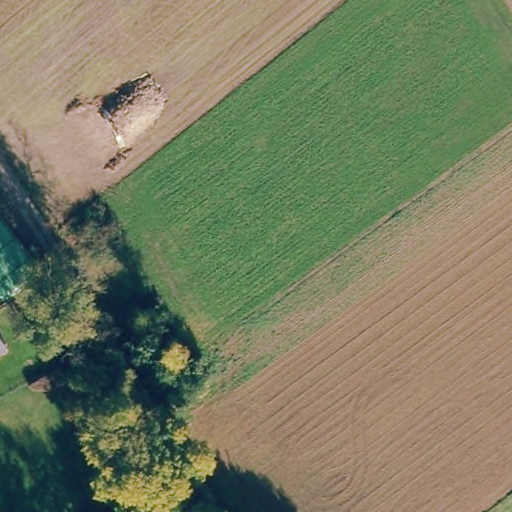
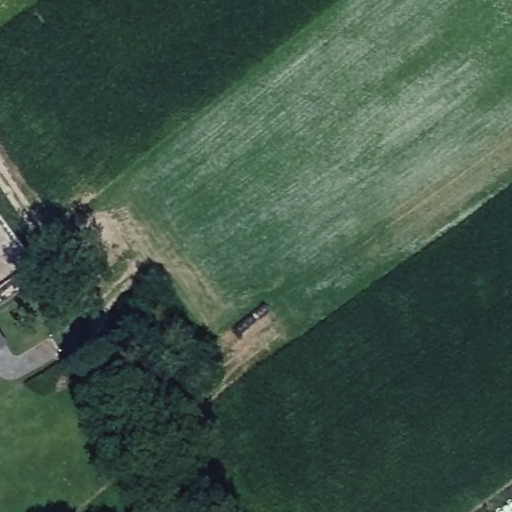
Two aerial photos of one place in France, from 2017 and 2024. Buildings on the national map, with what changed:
unchanged [(0,354),(0,337),(8,349),(0,354)]
unchanged [(192,497),(202,512),(184,512),(179,505),(192,497)]

